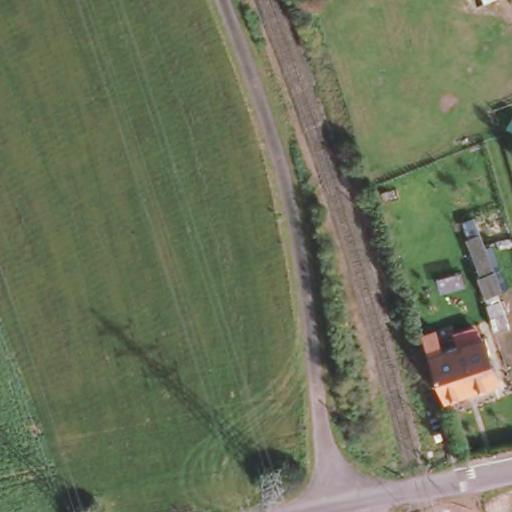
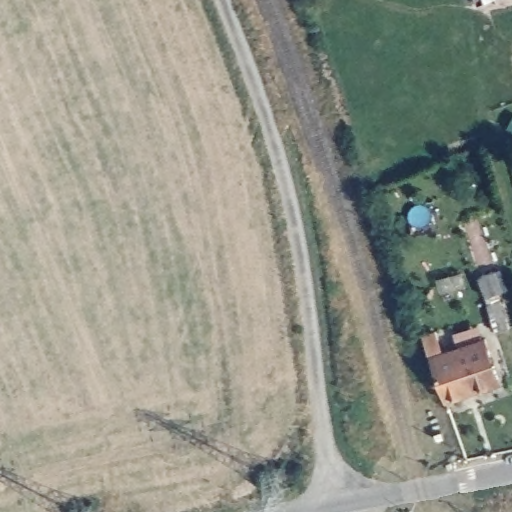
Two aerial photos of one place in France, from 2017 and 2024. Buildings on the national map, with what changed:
unchanged [(471,13),(467,0),(505,0),(471,13)]
unchanged [(473,214),(493,265),(501,287),(497,289),(510,321),(499,325),(480,270),(483,269),(463,217),(473,214)]
unchanged [(432,347),(429,338),(456,328),(460,337),(488,327),(495,343),(488,345),(498,372),(449,393),(432,347)]

